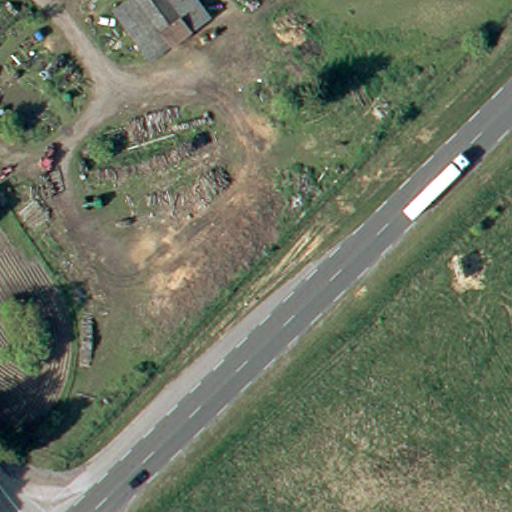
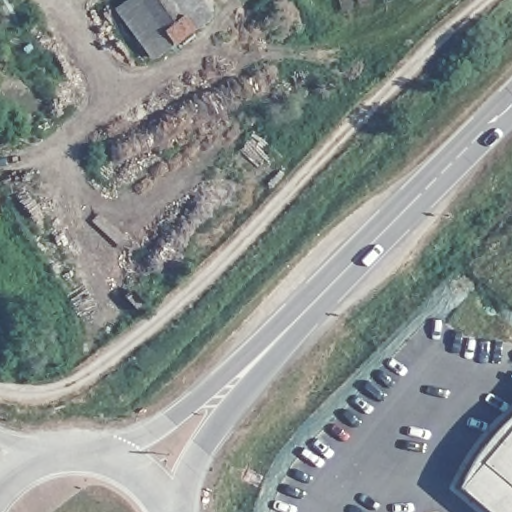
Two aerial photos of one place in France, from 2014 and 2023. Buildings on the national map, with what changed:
unchanged [(116,10),(130,0),(197,0),(208,15),(192,28),(171,43),(151,58),(116,10)]
new [(473,457),(489,434),(503,422),(512,414),(512,512),(486,512),(457,488),(473,457)]

